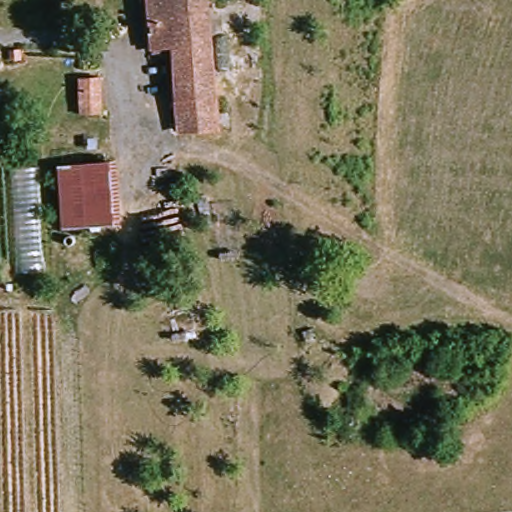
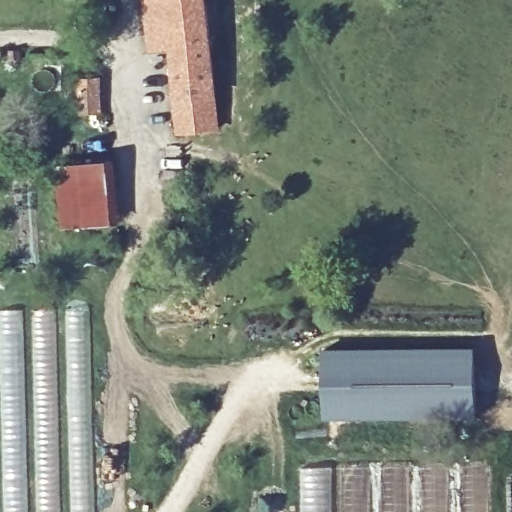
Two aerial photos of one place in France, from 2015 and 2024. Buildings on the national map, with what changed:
unchanged [(182,133),(176,44),(153,45),(151,0),(209,0),(216,131),(182,133)]
unchanged [(100,110),(79,111),(77,78),(98,76),(100,110)]
unchanged [(121,221),(66,223),(64,167),(118,161),(121,221)]
new [(91,512),(0,512),(0,311),(85,310),(91,512)]
new [(330,348),(480,348),(480,416),(330,415),(330,348)]
new [(299,466),(332,466),(332,512),(299,512),(299,466)]

